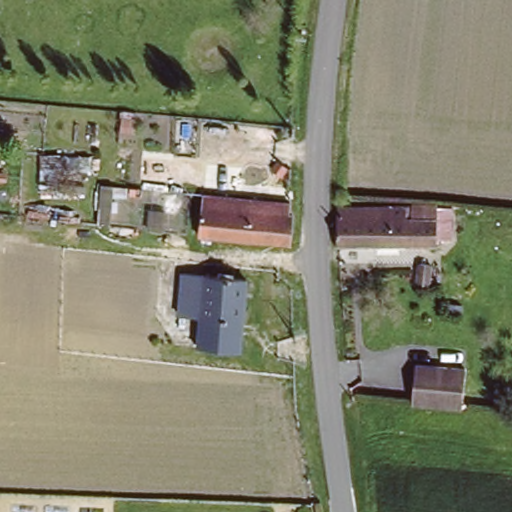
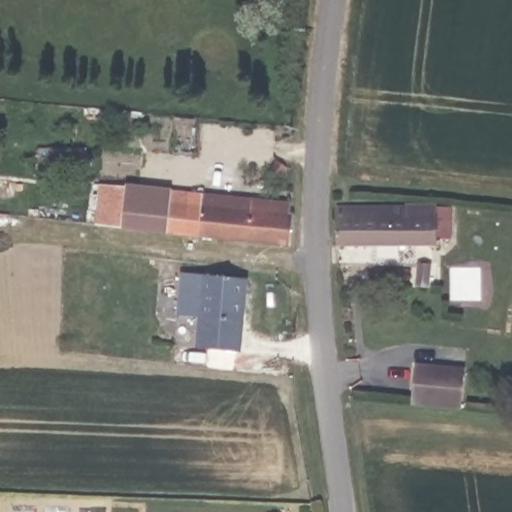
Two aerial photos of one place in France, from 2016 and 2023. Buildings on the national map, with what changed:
new [(127,185),(173,190),(173,192),(204,194),(204,197),(200,238),(165,235),(165,233),(122,230),(127,185)]
unchanged [(204,197),(288,204),(287,217),(292,216),(290,245),(200,238),(204,197)]
unchanged [(340,210),(407,211),(407,222),(417,222),(417,211),(437,211),(437,250),(343,252),(337,252),(337,210),(340,210)]
unchanged [(427,257),(442,257),(441,285),(427,284),(427,257)]
unchanged [(180,270),(241,276),(235,348),(197,344),(197,314),(177,312),(180,270)]
unchanged [(414,366),(464,369),(460,409),(412,405),(414,366)]

